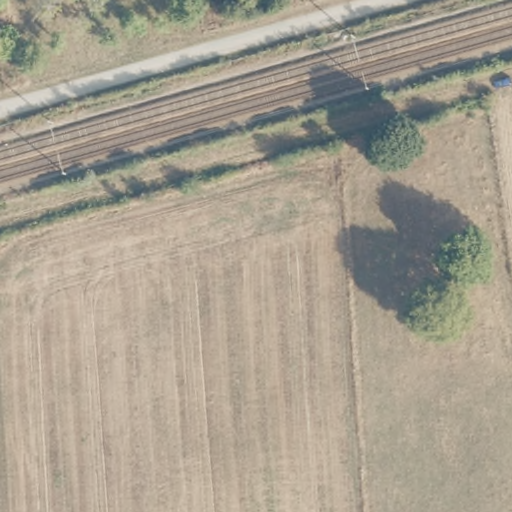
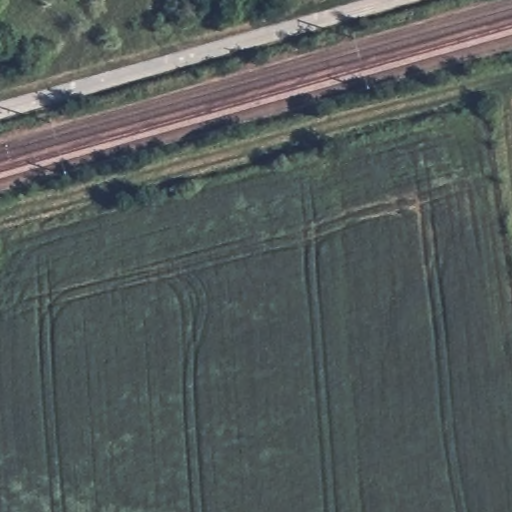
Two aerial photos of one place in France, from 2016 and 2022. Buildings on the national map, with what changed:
[]

